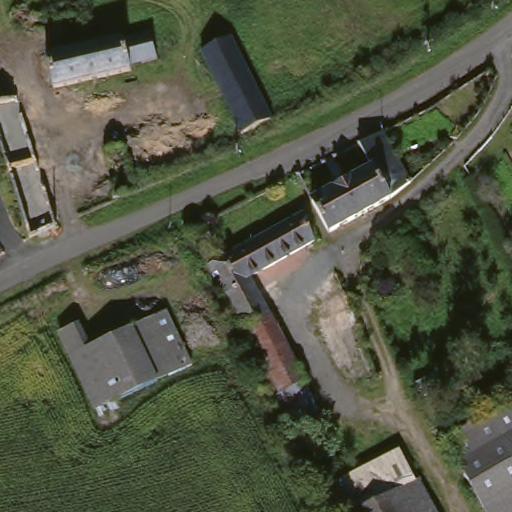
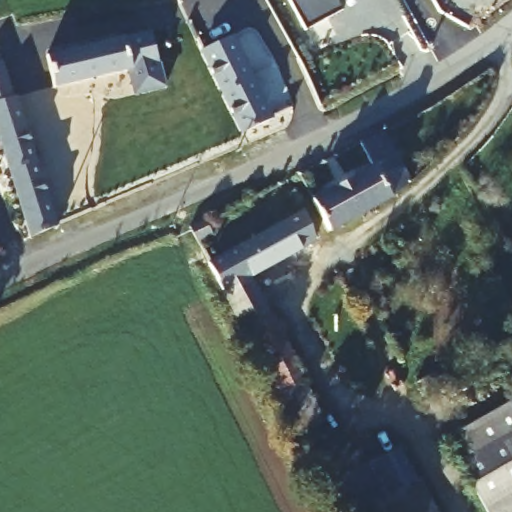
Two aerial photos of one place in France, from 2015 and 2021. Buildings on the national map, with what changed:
new [(337,0),(343,10),(306,30),(289,0),(337,0)]
unchanged [(49,88),(41,57),(146,32),(153,58),(125,65),(126,70),(49,88)]
unchanged [(238,134),(197,51),(226,36),(266,120),(238,134)]
unchanged [(10,199),(0,163),(0,100),(11,96),(49,227),(23,238),(10,199)]
unchanged [(374,201),(327,233),(309,204),(311,201),(367,172),(352,141),(378,128),(379,131),(405,180),(374,201)]
demolished [(113,212),(103,165),(123,160),(134,207),(113,212)]
demolished [(187,233),(226,213),(234,228),(193,249),(187,233)]
unchanged [(310,242),(247,273),(246,281),(301,381),(318,424),(288,437),(266,397),(208,266),(298,217),(310,242)]
demolished [(73,325),(84,346),(161,314),(184,366),(90,410),(51,334),(73,325)]
unchanged [(503,406),(512,419),(512,493),(479,510),(441,441),(503,406)]
unchanged [(429,512),(322,512),(311,492),(393,451),(429,512)]

